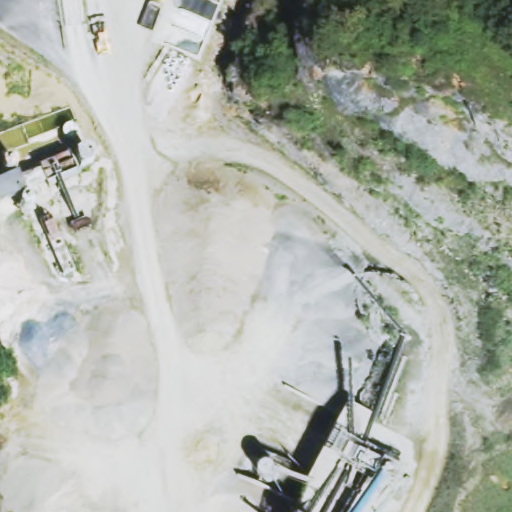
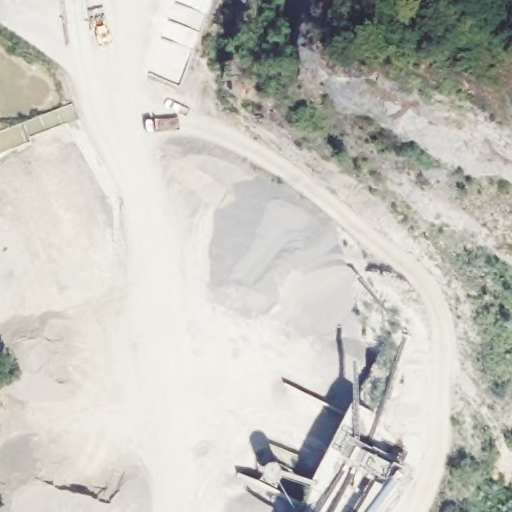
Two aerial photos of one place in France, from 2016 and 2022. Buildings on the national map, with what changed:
unchanged [(22,205),(18,197),(14,200),(3,197),(0,197),(0,176),(7,172),(2,171),(0,168),(0,159),(3,156),(8,153),(14,154),(19,159),(20,166),(19,170),(38,162),(73,149),(75,144),(79,142),(87,141),(91,143),(93,146),(92,156),(87,161),(79,162),(74,160),(73,158),(46,174),(24,184),(27,191),(30,190),(35,200),(22,205)]

